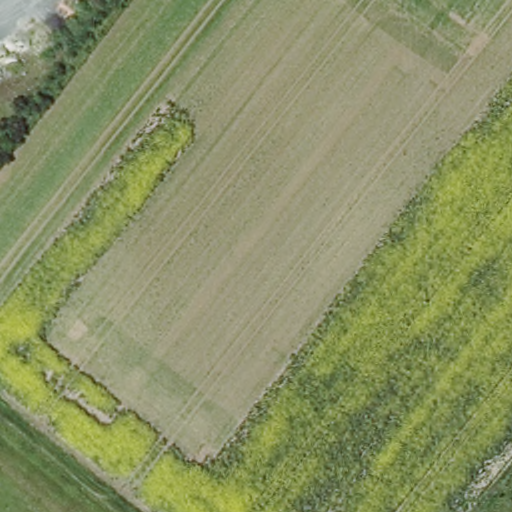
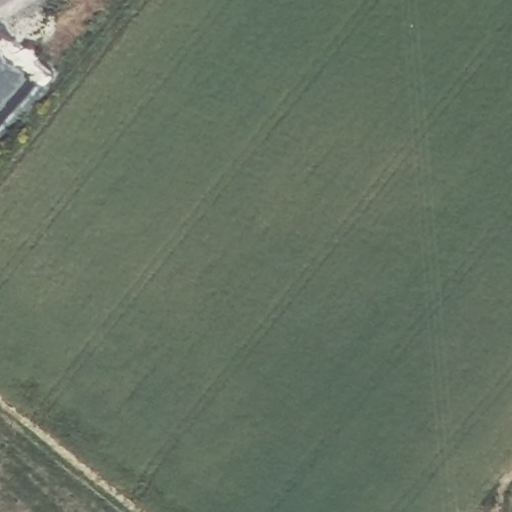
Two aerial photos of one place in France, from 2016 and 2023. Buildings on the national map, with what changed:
[]

